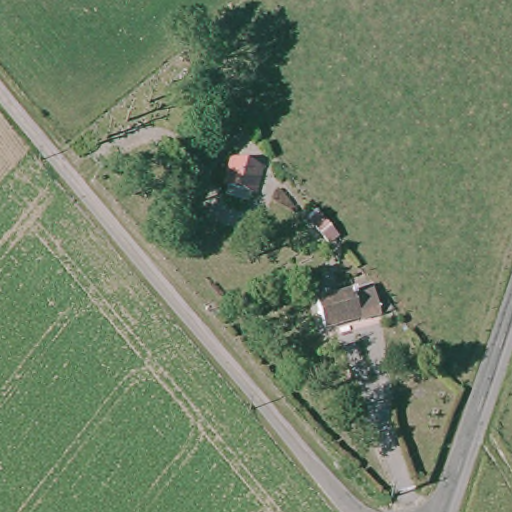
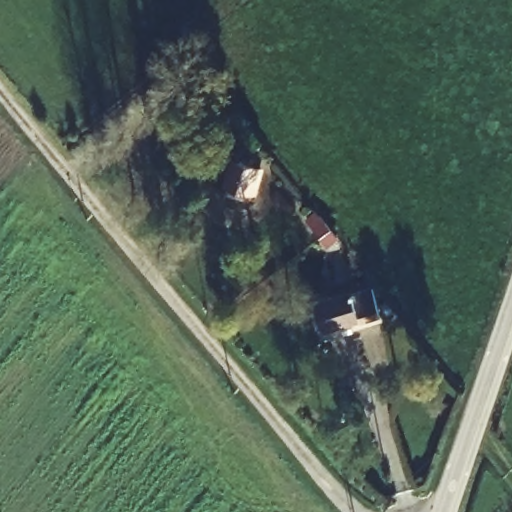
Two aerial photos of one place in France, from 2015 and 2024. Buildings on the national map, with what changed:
unchanged [(228,162),(253,169),(246,193),(222,184),(228,162)]
unchanged [(312,263),(302,251),(294,242),(303,234),(312,243),(321,254),(312,263)]
unchanged [(313,304),(367,293),(375,318),(357,322),(356,318),(318,327),(313,304)]

